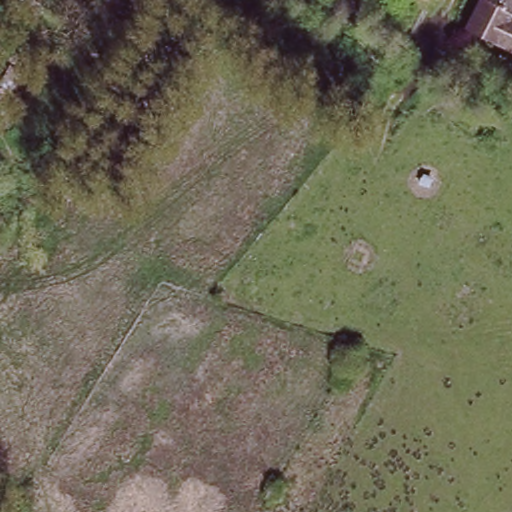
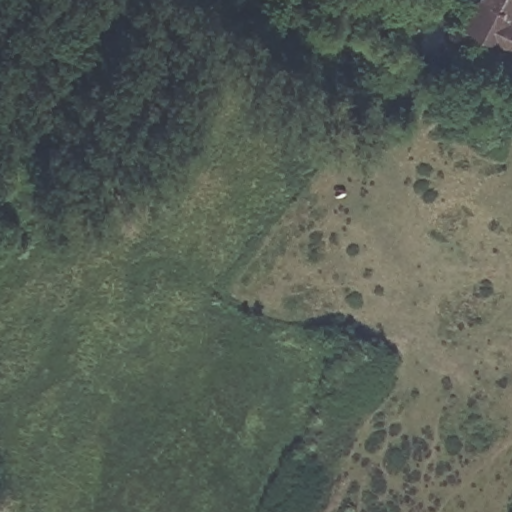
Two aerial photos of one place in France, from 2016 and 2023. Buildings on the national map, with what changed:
unchanged [(483,2),(484,0),(512,0),(512,16),(483,2)]
unchanged [(467,34),(483,2),(512,16),(512,56),(467,34)]

